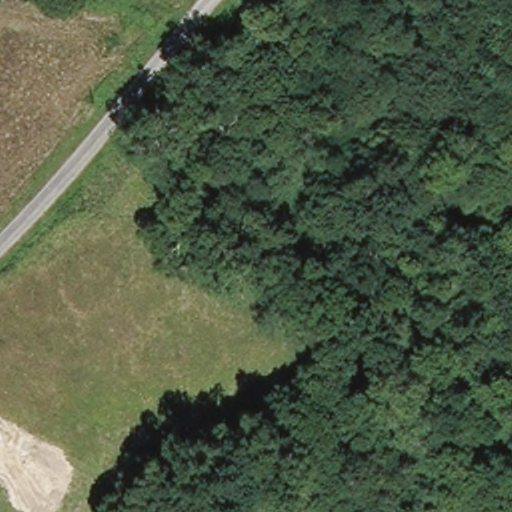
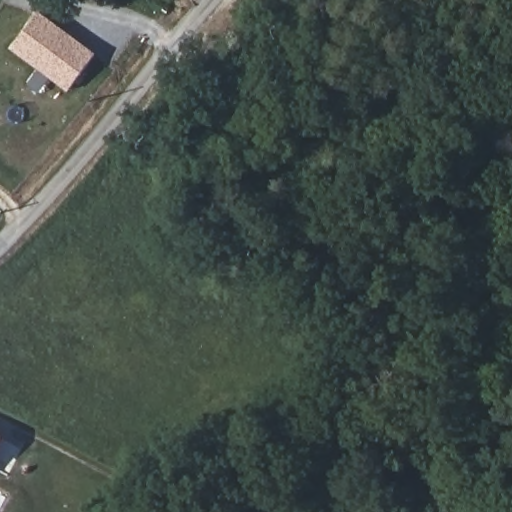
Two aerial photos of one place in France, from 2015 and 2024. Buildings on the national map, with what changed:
new [(40,13),(92,54),(64,89),(12,49),(40,13)]
new [(0,443),(0,435),(3,437),(0,443)]

